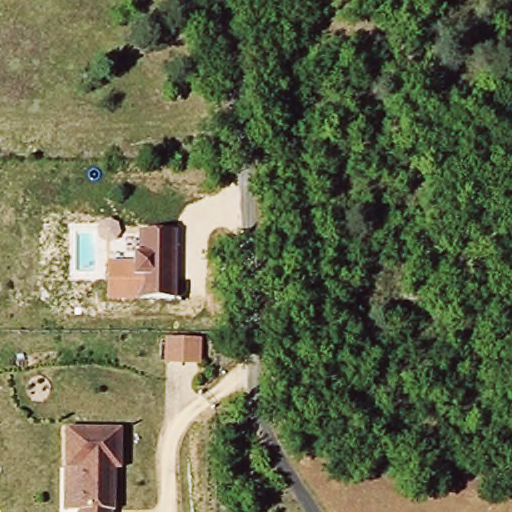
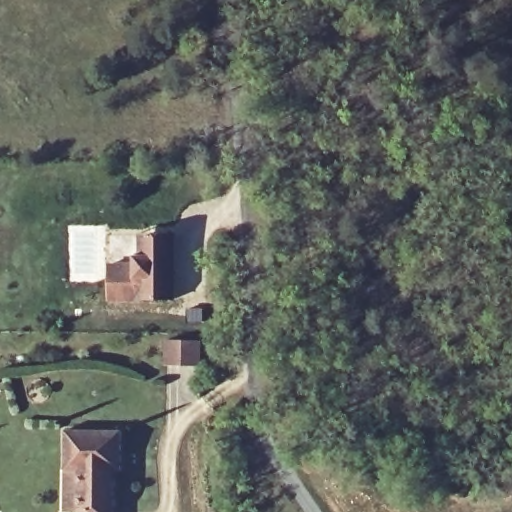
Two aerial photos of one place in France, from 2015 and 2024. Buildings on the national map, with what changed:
unchanged [(178,300),(107,300),(107,264),(132,263),(132,253),(137,253),(137,232),(177,232),(178,300)]
unchanged [(201,339),(200,366),(161,364),(162,337),(201,339)]
unchanged [(69,432),(123,430),(125,470),(119,470),(121,512),(86,512),(85,470),(70,471),(69,432)]
unchanged [(65,471),(70,471),(85,470),(86,512),(66,512),(65,471)]

